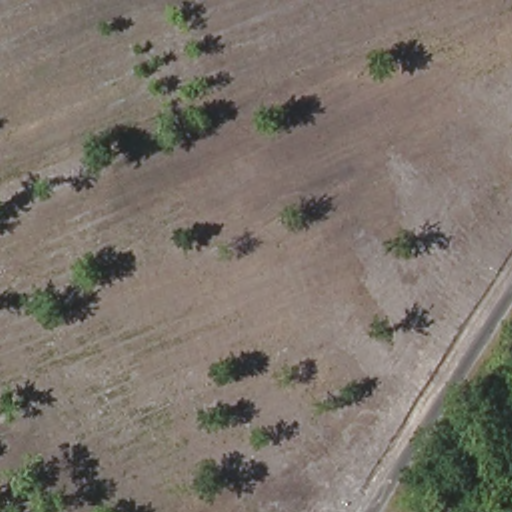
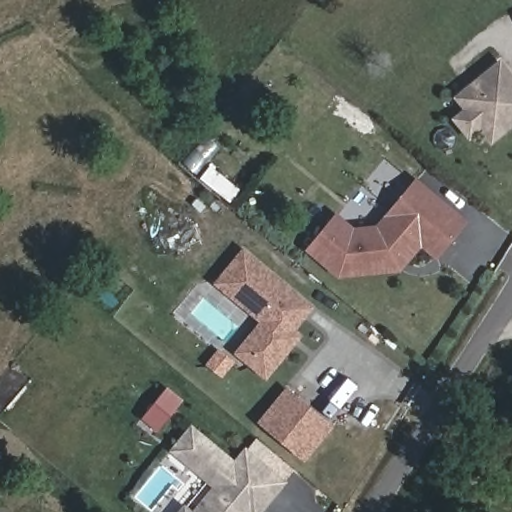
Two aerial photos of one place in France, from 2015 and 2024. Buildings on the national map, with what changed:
new [(481,130),(470,140),(451,117),(462,108),(453,96),(501,58),(512,72),(512,129),(493,145),(481,130)]
new [(437,260),(421,247),(400,271),(336,277),(305,250),(337,212),(355,226),(376,225),(416,176),(469,221),(437,260)]
new [(243,247),(315,307),(296,330),(303,336),(267,380),(234,352),(258,322),(214,283),(243,247)]
new [(305,462),(256,421),(287,386),(334,425),(305,462)]
new [(168,390),(184,402),(176,411),(160,430),(146,418),(160,400),(168,390)]
new [(262,512),(177,512),(184,504),(191,510),(212,486),(168,450),(191,423),(234,459),(245,445),(288,481),(262,512)]

